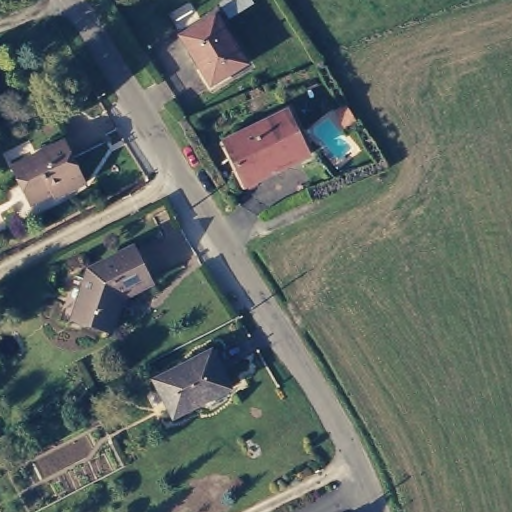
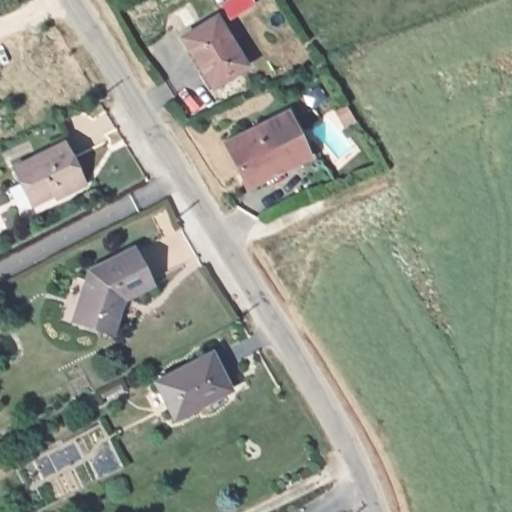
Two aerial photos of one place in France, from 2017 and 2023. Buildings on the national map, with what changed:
unchanged [(247,0),(250,4),(230,16),(221,3),(225,0),(247,0)]
unchanged [(245,63),(210,84),(180,36),(214,14),(245,63)]
unchanged [(79,105),(73,96),(83,90),(89,100),(79,105)]
unchanged [(291,111),(310,156),(247,184),(227,139),(291,111)]
unchanged [(60,139),(81,177),(30,203),(10,165),(60,139)]
unchanged [(135,245),(153,279),(122,296),(109,331),(70,317),(87,270),(135,245)]
unchanged [(216,352),(233,386),(170,416),(153,382),(216,352)]

